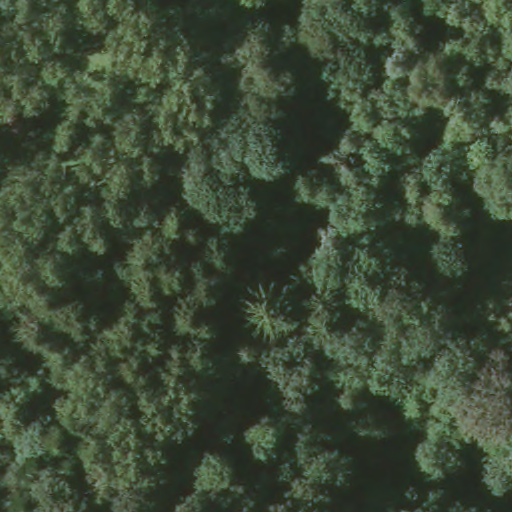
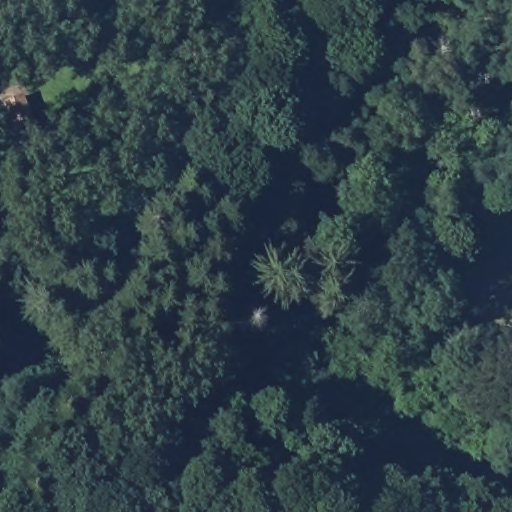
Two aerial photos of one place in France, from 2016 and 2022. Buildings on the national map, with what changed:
unchanged [(31,127),(8,132),(2,97),(23,91),(31,127)]

